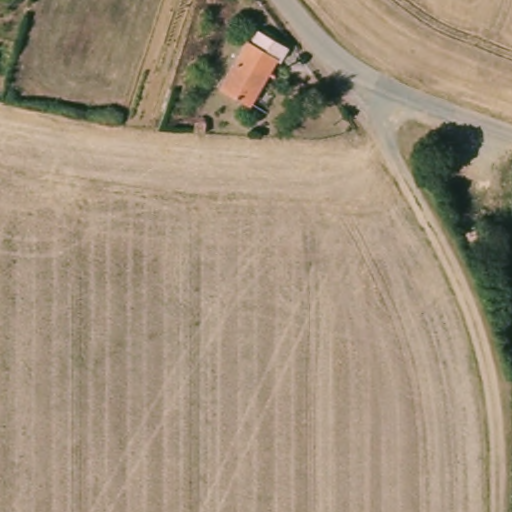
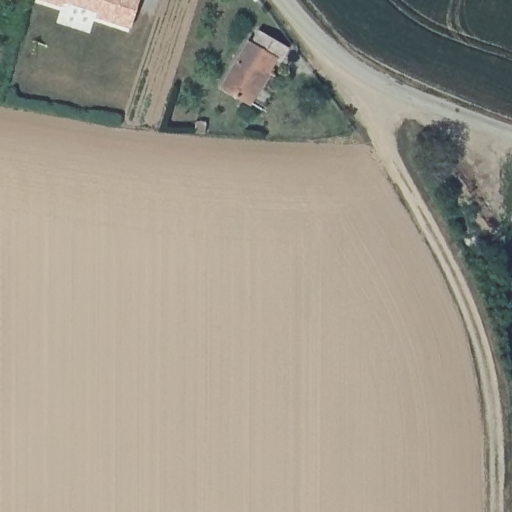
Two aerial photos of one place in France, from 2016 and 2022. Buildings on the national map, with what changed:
new [(95,16),(97,12),(63,1),(62,5),(44,0),(139,0),(130,28),(95,16)]
unchanged [(243,101),(220,89),(247,44),(250,46),(259,31),(288,48),(280,63),(275,60),(258,90),(249,105),(243,101)]
unchanged [(207,122),(207,133),(201,133),(194,132),(195,121),(207,122)]

